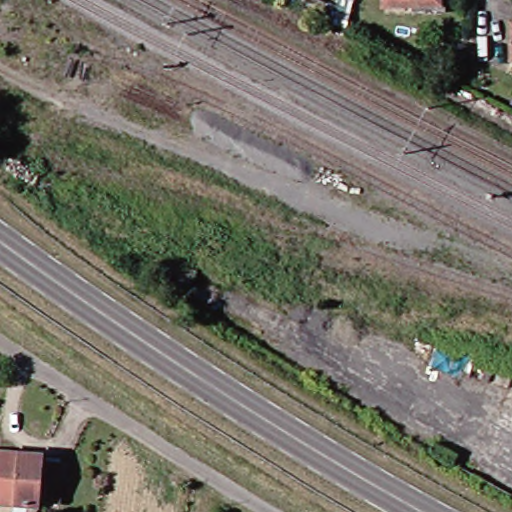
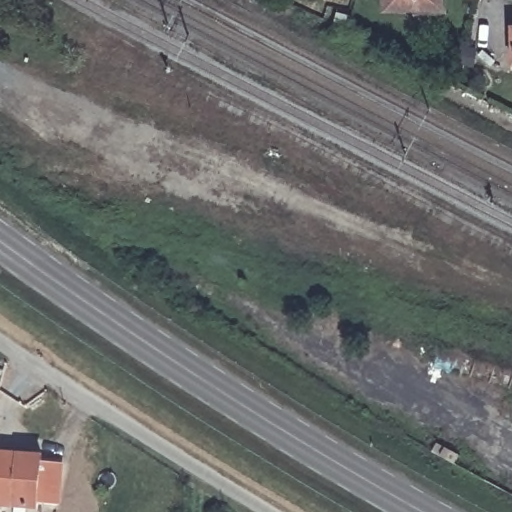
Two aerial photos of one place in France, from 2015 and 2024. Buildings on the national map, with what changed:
unchanged [(390,6),(390,0),(444,0),(444,5),(390,6)]
unchanged [(40,459),(64,463),(64,503),(41,500),(41,506),(0,501),(0,450),(41,454),(40,459)]

